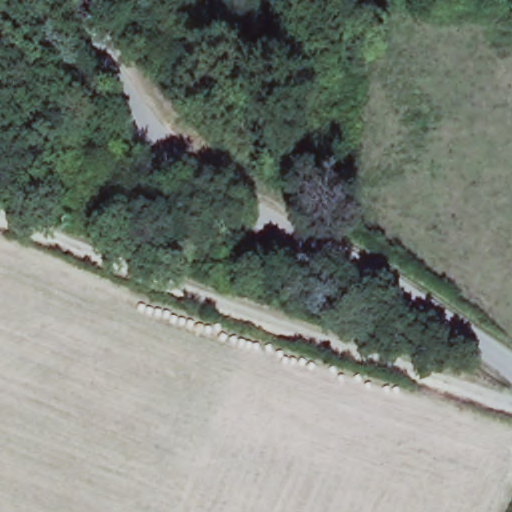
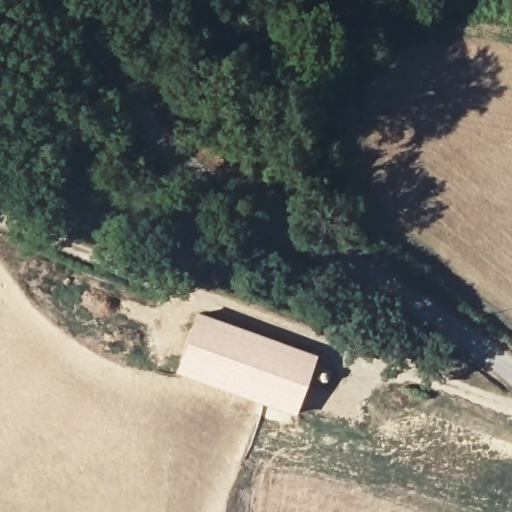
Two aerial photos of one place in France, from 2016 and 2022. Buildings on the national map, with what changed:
new [(294,417),(175,372),(197,313),(316,358),(294,417)]

